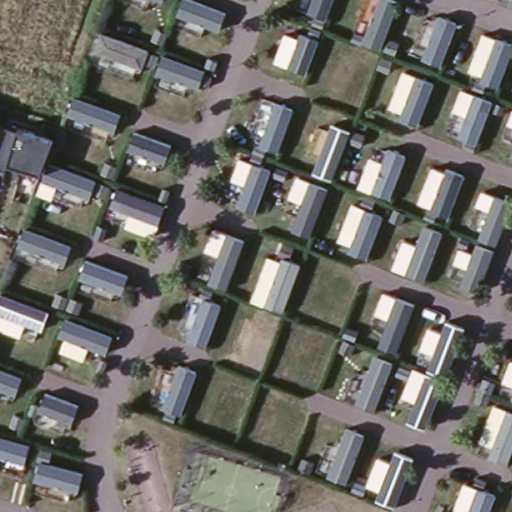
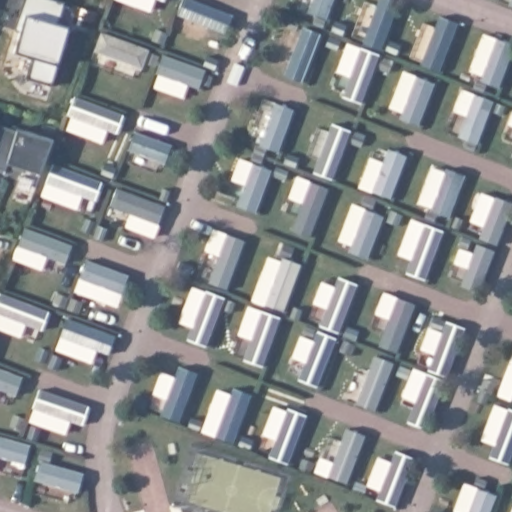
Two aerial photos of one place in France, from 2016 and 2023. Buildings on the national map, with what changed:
new [(58,25),(70,29),(52,90),(25,82),(31,59),(12,53),(23,16),(17,14),(21,0),(53,0),(64,4),(58,25)]
unchanged [(41,173),(9,163),(7,170),(0,168),(0,123),(52,140),(41,173)]

